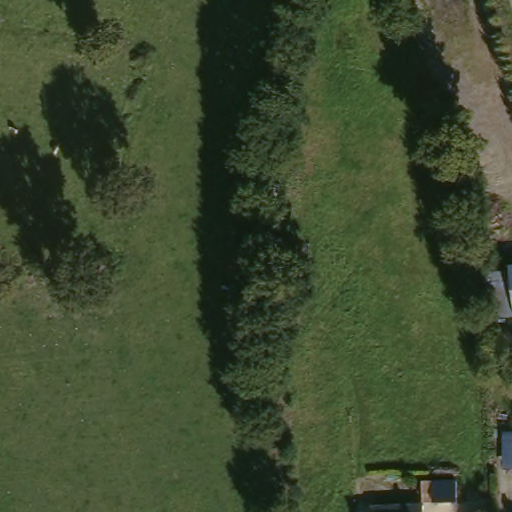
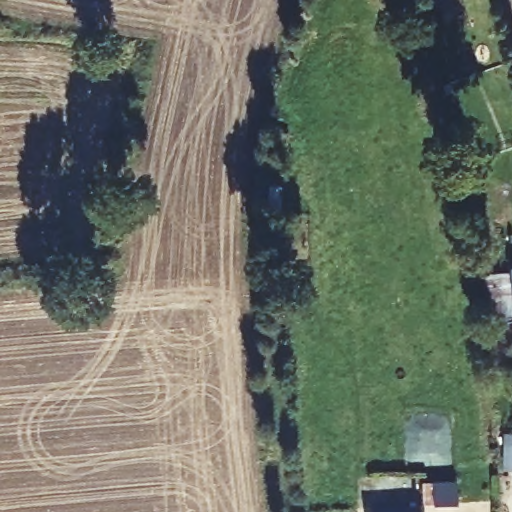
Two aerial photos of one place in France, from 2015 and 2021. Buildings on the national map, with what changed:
unchanged [(505,324),(500,305),(512,303),(512,323),(505,324)]
unchanged [(512,437),(512,473),(500,475),(502,439),(512,437)]
unchanged [(425,512),(374,512),(373,511),(425,509),(425,512)]

